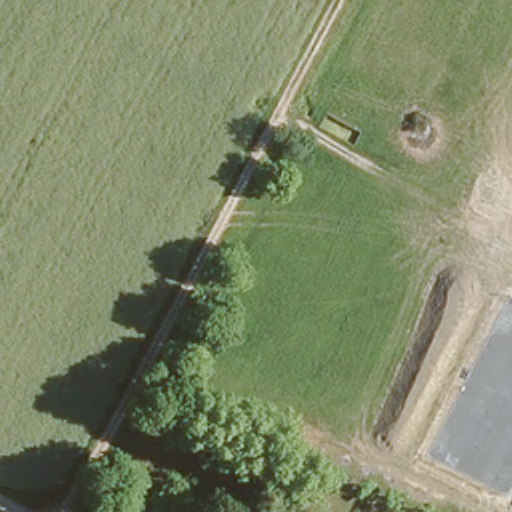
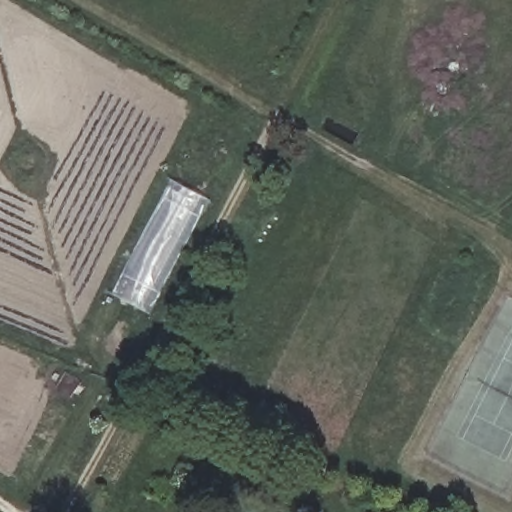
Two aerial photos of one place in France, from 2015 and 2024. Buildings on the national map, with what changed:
new [(147,311),(118,295),(176,180),(208,198),(147,311)]

